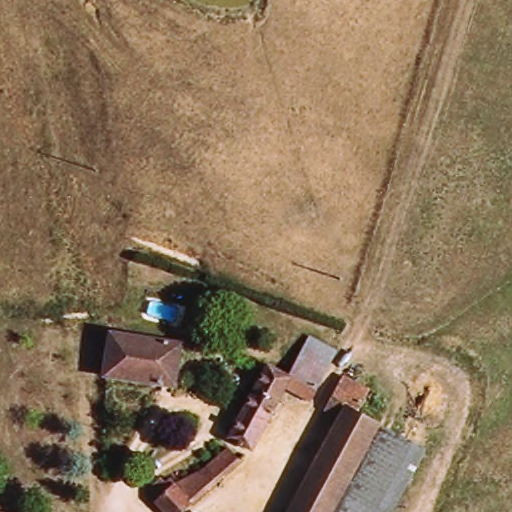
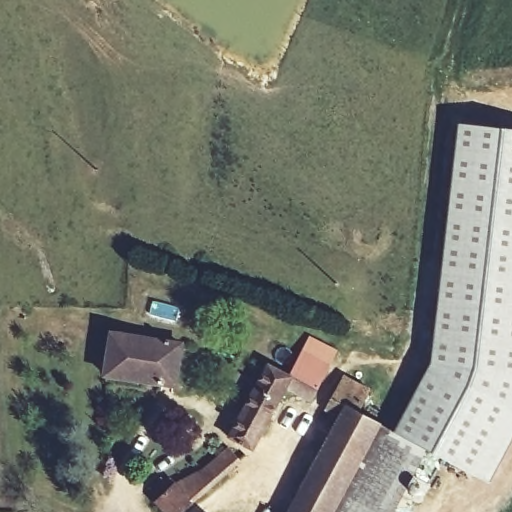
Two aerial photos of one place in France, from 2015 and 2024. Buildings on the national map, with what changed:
new [(418,448),(393,435),(430,366),(458,125),(512,130),(512,442),(491,481),(418,448)]
unchanged [(97,372),(105,329),(176,342),(168,384),(97,372)]
unchanged [(225,431),(250,392),(228,380),(240,360),(263,373),(270,363),(290,375),(301,355),(310,337),(336,350),(327,368),(310,398),(285,385),(251,445),(225,431)]
unchanged [(325,407),(342,376),(370,390),(356,414),(374,424),(326,512),(282,512),(340,415),(325,407)]
unchanged [(384,512),(326,512),(374,424),(418,448),(384,512)]
unchanged [(158,480),(165,473),(172,482),(216,446),(231,463),(172,512),(159,512),(149,501),(153,497),(141,485),(153,475),(158,480)]

